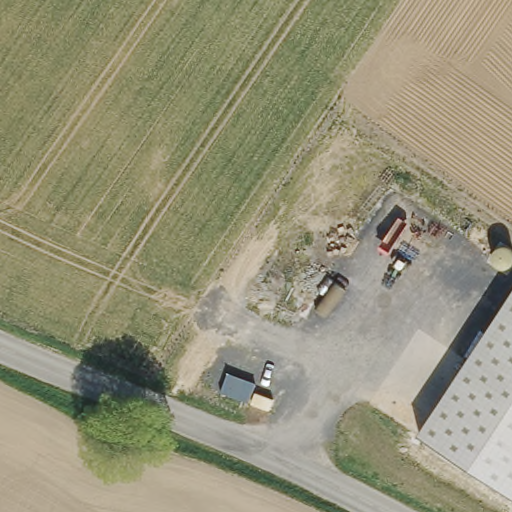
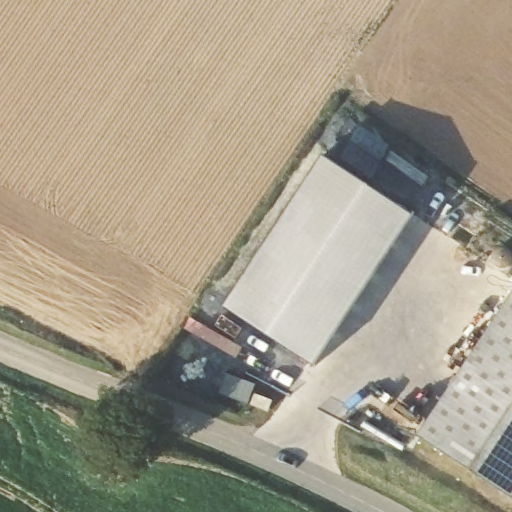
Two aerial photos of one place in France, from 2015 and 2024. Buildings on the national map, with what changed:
new [(413,216),(314,367),(222,308),(322,156),(413,216)]
unchanged [(419,437),(512,293),(512,498),(419,437)]
unchanged [(245,405),(217,394),(224,374),(254,385),(245,405)]

